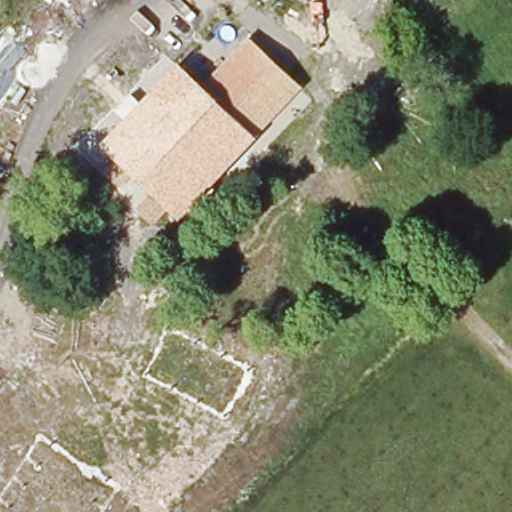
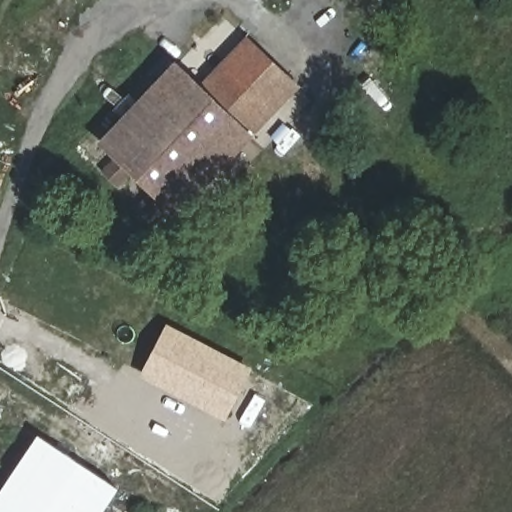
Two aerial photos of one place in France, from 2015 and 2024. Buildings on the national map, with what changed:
unchanged [(199,88),(248,35),(310,88),(258,145),(250,137),(199,88)]
unchanged [(199,88),(250,137),(180,211),(109,143),(179,70),(199,88)]
new [(258,375),(231,426),(143,380),(169,328),(258,375)]
new [(107,512),(0,512),(0,497),(42,434),(124,486),(107,512)]

